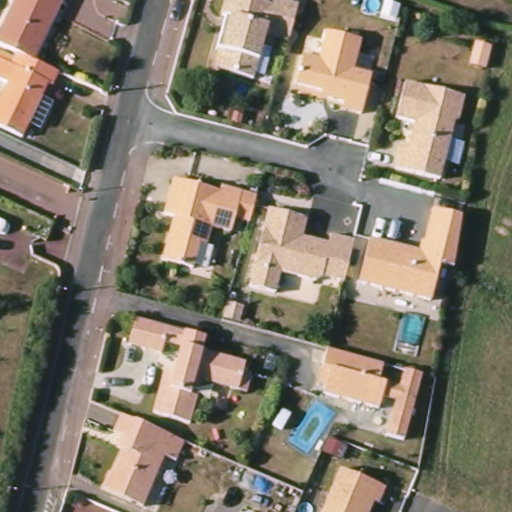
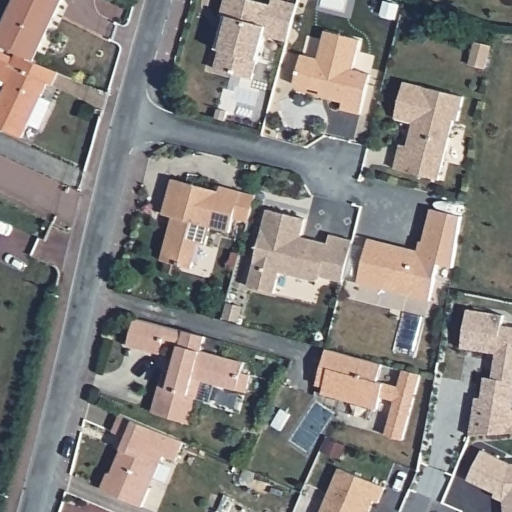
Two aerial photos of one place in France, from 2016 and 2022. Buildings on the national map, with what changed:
unchanged [(14,0),(58,0),(59,1),(30,62),(26,61),(21,58),(14,55),(0,48),(0,30),(14,0)]
unchanged [(227,0),(252,0),(271,6),(273,0),(279,0),(297,5),(287,42),(264,36),(252,79),(216,70),(221,51),(216,49),(224,17),(222,16),(227,0)]
unchanged [(342,111),(344,104),(329,100),(330,95),(295,86),(303,57),(319,62),(327,32),(361,42),(354,72),(371,76),(361,116),(342,111)]
unchanged [(471,61),(476,39),(491,43),(486,65),(471,61)]
unchanged [(49,90),(45,86),(39,100),(50,105),(37,131),(26,126),(19,141),(0,131),(0,97),(5,86),(0,83),(0,56),(11,61),(14,55),(21,58),(26,61),(30,62),(45,70),(56,74),(49,90)]
unchanged [(414,124),(396,120),(405,84),(464,98),(458,122),(454,121),(440,181),(395,170),(401,146),(408,147),(411,137),(414,124)]
unchanged [(251,222),(234,217),(230,232),(211,228),(207,246),(200,245),(194,271),(163,263),(173,220),(163,217),(171,182),(218,192),(219,187),(240,192),(257,196),(251,222)]
unchanged [(449,268),(436,265),(427,302),(356,284),(366,241),(416,252),(418,242),(420,243),(427,210),(458,217),(449,268)]
unchanged [(321,277),(321,278),(315,282),(280,274),(275,295),(249,289),(268,212),(305,221),(301,239),(312,242),(328,246),(330,237),(353,242),(343,283),(321,277)]
new [(479,395),(484,396),(488,375),(495,376),(499,351),(464,346),(470,307),(506,313),(505,323),(512,324),(512,431),(473,433),(479,395)]
unchanged [(190,427),(153,418),(164,375),(177,377),(182,352),(162,347),(159,357),(126,350),(133,322),(203,340),(200,354),(243,365),(241,375),(249,377),(245,394),(200,383),(196,400),(190,427)]
unchanged [(397,400),(382,397),(379,410),(324,397),(325,390),(317,388),(322,371),(326,352),(382,365),(378,383),(400,388),(404,370),(421,374),(405,440),(388,436),(397,400)]
unchanged [(182,446),(175,463),(164,458),(143,512),(101,496),(108,478),(111,480),(125,443),(111,437),(118,421),(182,446)]
new [(494,496),(496,491),(469,478),(483,450),(510,463),(512,463),(512,512),(505,512),(504,501),(494,496)]
unchanged [(374,502),(370,512),(323,512),(340,471),(385,489),(379,505),(374,502)]

